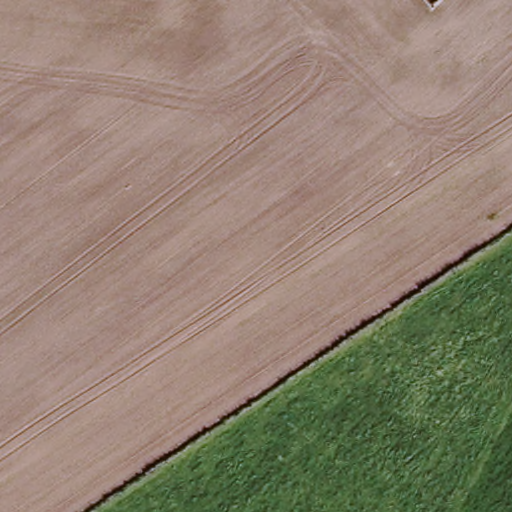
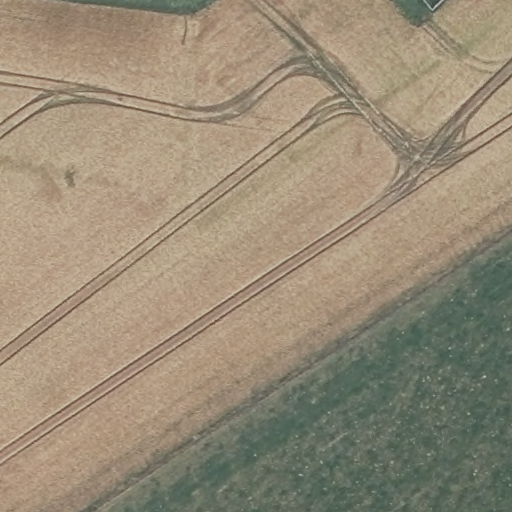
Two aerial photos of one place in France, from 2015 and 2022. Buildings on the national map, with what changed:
[]

